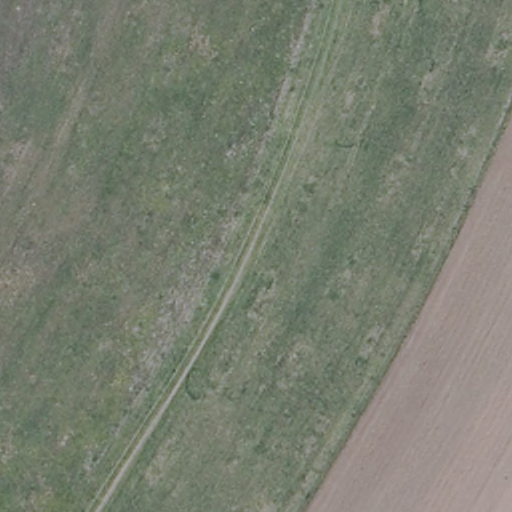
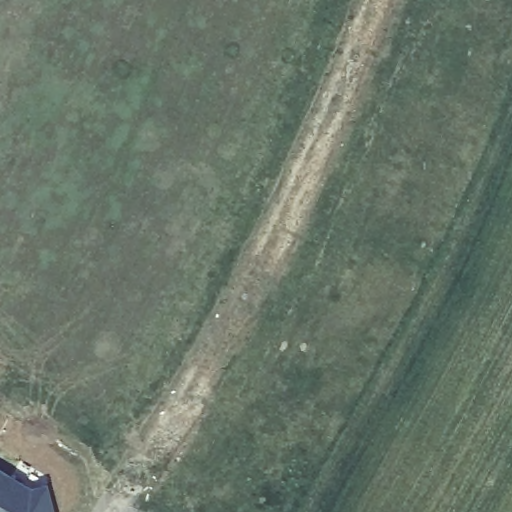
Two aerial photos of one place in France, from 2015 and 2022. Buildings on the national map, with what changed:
new [(20,459),(50,477),(46,485),(53,512),(0,512),(0,471),(10,477),(20,459)]

